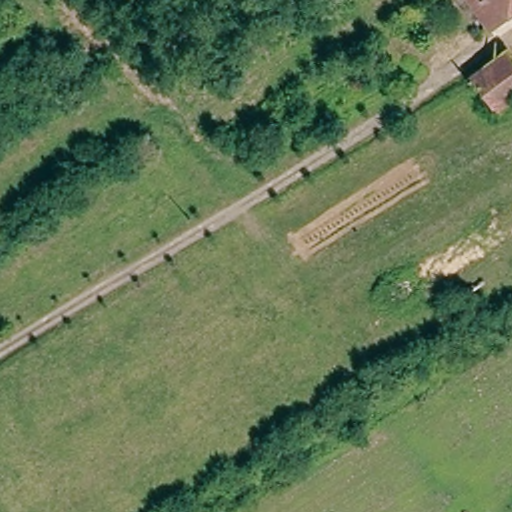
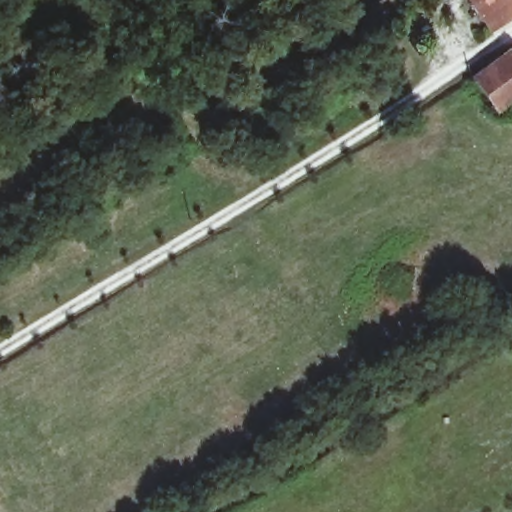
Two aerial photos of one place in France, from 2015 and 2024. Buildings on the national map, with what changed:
unchanged [(472,0),(512,0),(512,18),(494,31),(472,0)]
unchanged [(473,76),(503,54),(505,52),(512,60),(512,100),(498,110),(473,76)]

